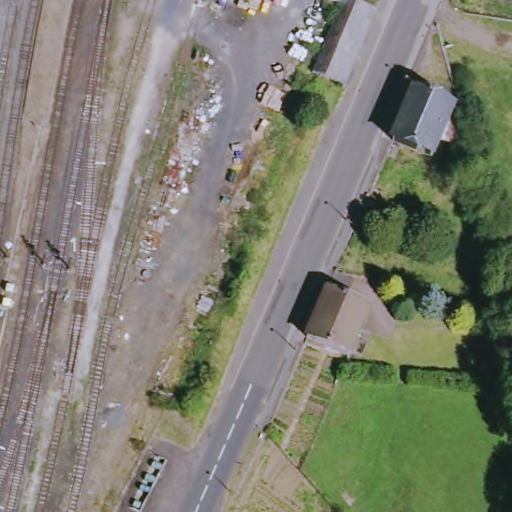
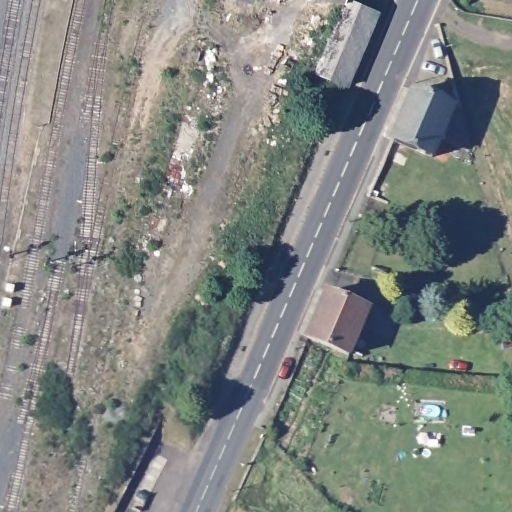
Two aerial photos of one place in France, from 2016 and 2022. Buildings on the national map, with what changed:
unchanged [(255,4),(237,0),(256,0),(255,4)]
unchanged [(350,5),(331,0),(352,0),(350,5)]
unchanged [(322,81),(338,42),(353,2),(385,15),(354,93),(322,81)]
unchanged [(419,89),(465,108),(442,164),(397,148),(419,89)]
unchanged [(312,336),(332,289),(372,308),(350,355),(312,336)]
unchanged [(512,318),(512,321),(512,349),(503,351),(497,322),(512,318)]

